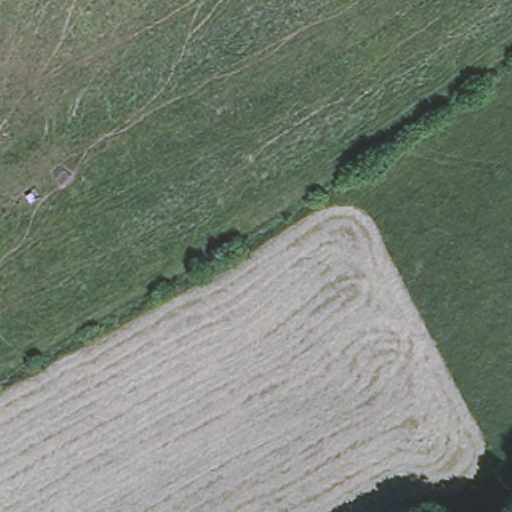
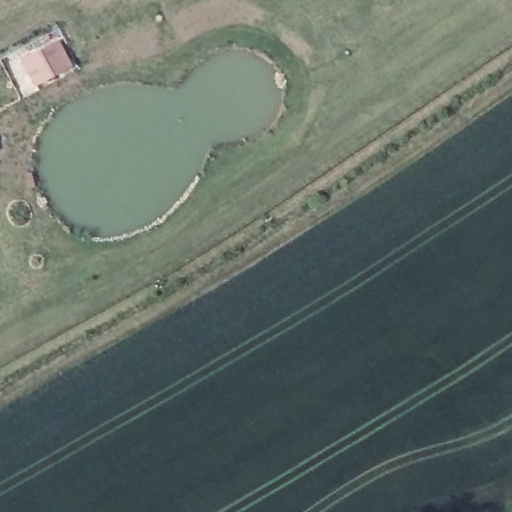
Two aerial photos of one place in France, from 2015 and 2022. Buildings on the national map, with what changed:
new [(72,65),(35,85),(22,58),(60,39),(72,65)]

